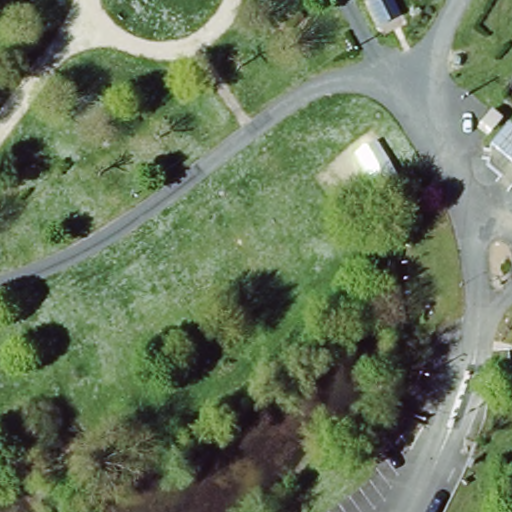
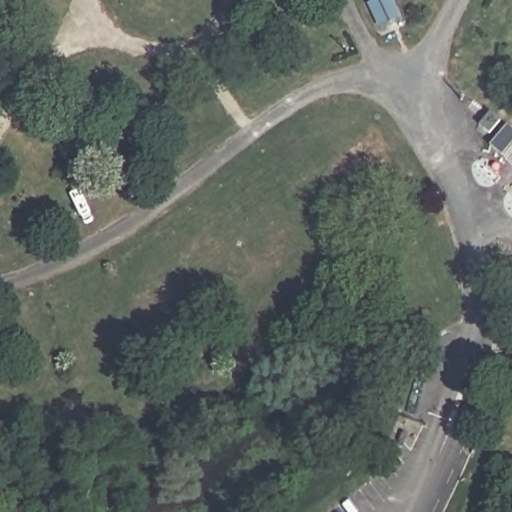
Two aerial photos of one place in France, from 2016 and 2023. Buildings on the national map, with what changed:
unchanged [(491,148),(510,128),(512,129),(512,164),(491,148)]
unchanged [(512,373),(506,353),(512,352),(512,373)]

